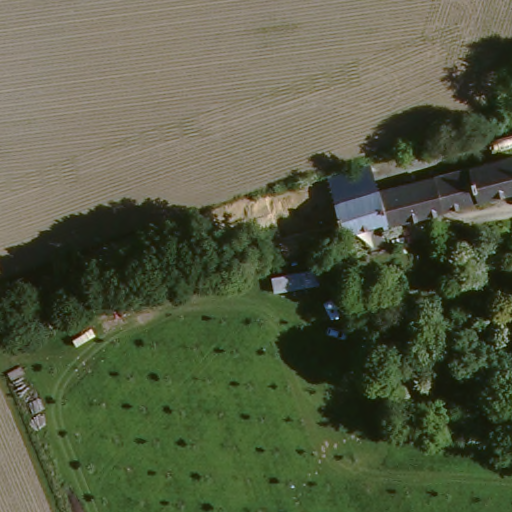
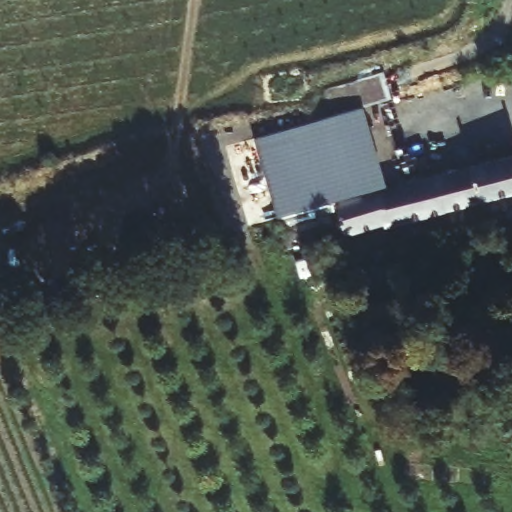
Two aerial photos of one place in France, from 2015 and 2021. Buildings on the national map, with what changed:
new [(278,216),(255,138),(365,107),(386,184),(278,216)]
unchanged [(512,158),(512,193),(433,216),(424,178),(512,158)]
unchanged [(388,229),(387,224),(348,236),(341,205),(424,178),(433,216),(388,229)]

